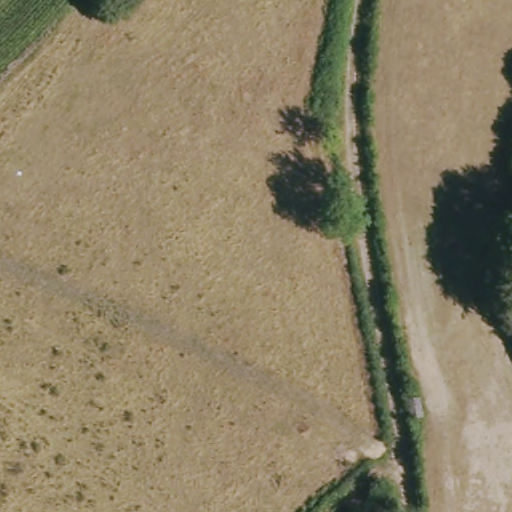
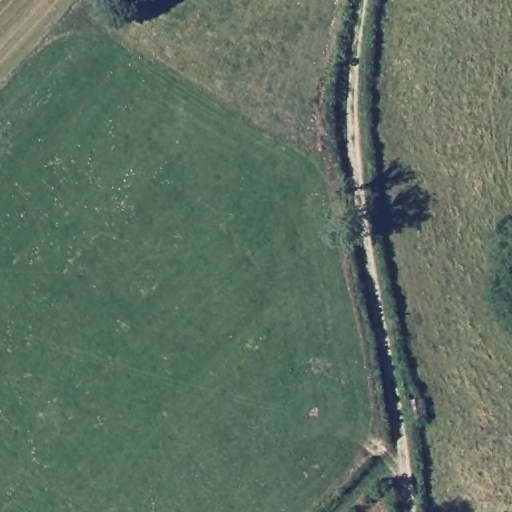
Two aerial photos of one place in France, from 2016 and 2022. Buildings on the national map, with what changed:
unchanged [(417,397),(419,416),(409,417),(405,398),(417,397)]

